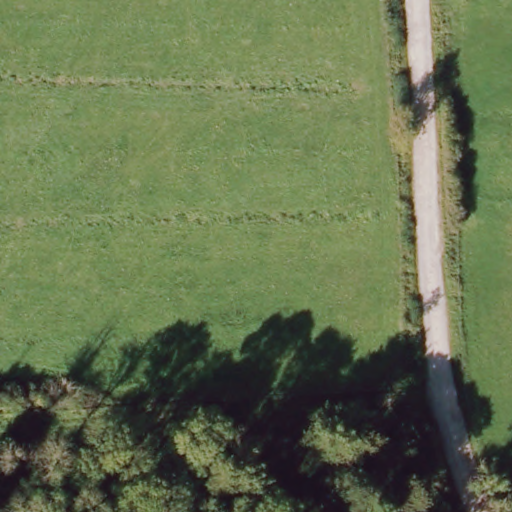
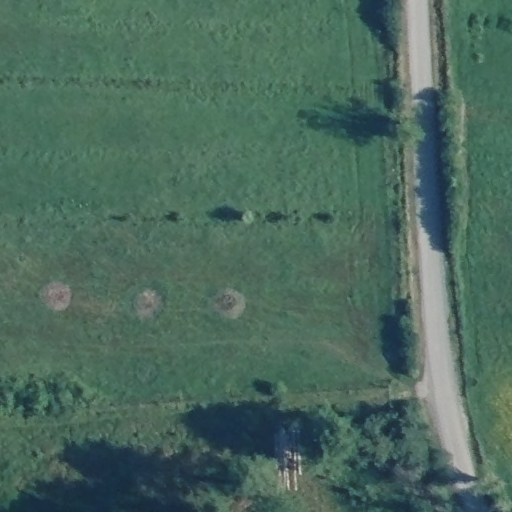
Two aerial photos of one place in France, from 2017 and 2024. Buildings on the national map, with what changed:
[]

